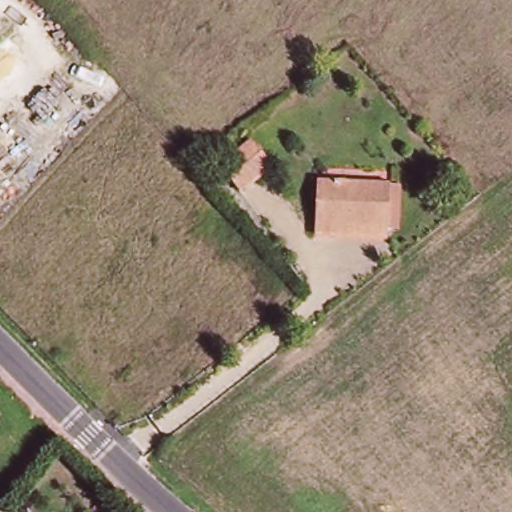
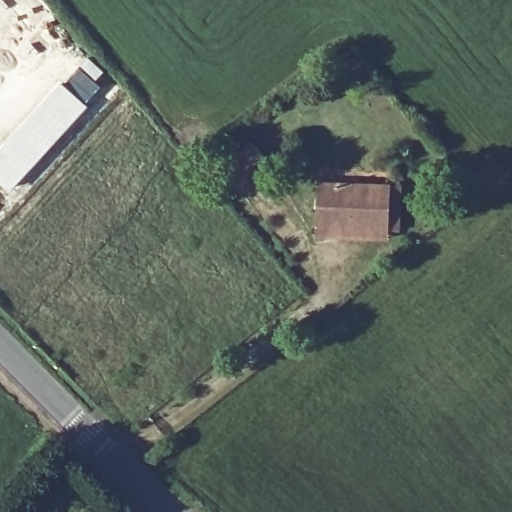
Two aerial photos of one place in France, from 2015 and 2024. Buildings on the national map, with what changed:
new [(0,181),(0,149),(61,82),(88,106),(11,191),(0,181)]
unchanged [(273,164),(241,190),(222,168),(254,141),(273,164)]
unchanged [(321,180),(393,184),(390,229),(390,239),(317,234),(318,225),(321,180)]

